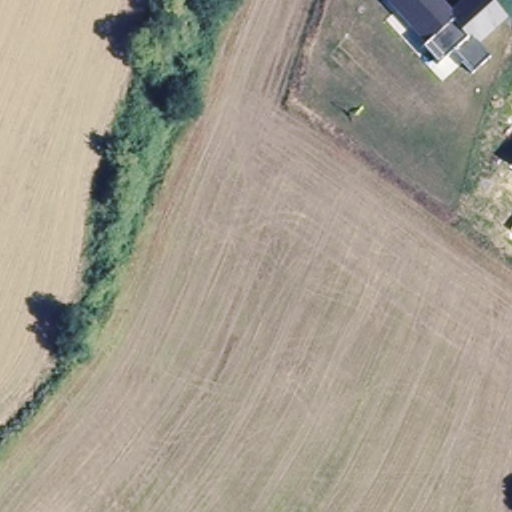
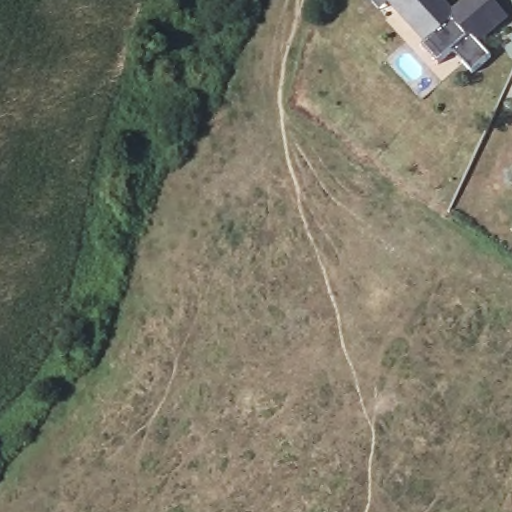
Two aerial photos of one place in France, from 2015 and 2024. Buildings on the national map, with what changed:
unchanged [(461,0),(494,0),(509,17),(479,44),(490,57),(472,72),(453,50),(437,65),(423,49),(422,45),(386,2),(388,0),(444,0),(452,9),(461,0)]

